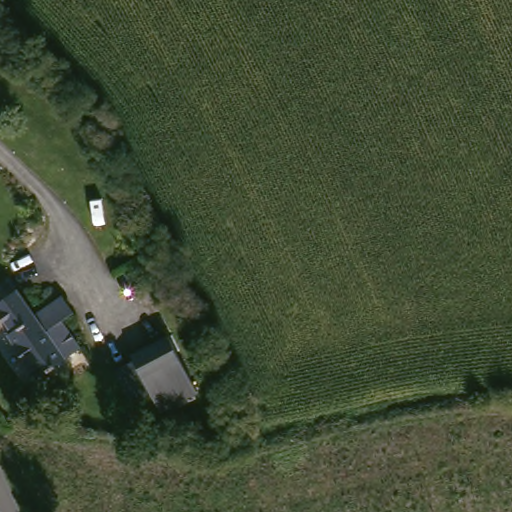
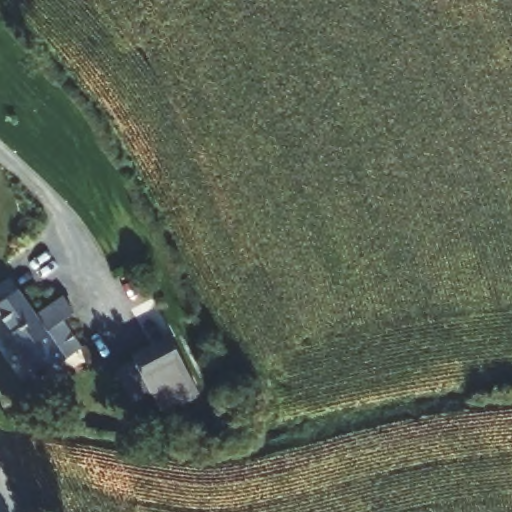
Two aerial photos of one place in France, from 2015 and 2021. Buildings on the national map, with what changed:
unchanged [(64,325),(79,350),(39,378),(11,339),(15,336),(0,314),(0,302),(19,290),(36,318),(67,297),(77,314),(64,325)]
unchanged [(166,335),(196,396),(155,414),(127,352),(166,335)]

